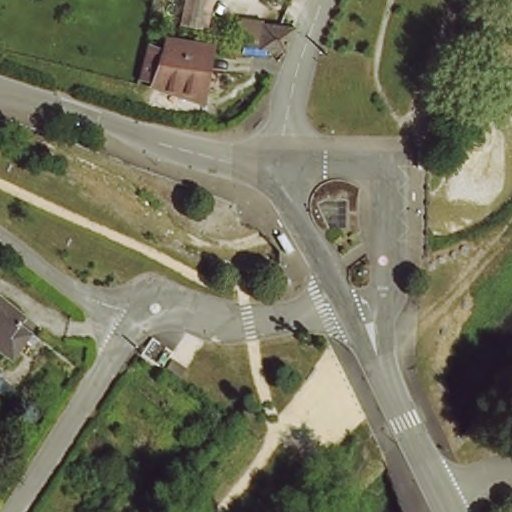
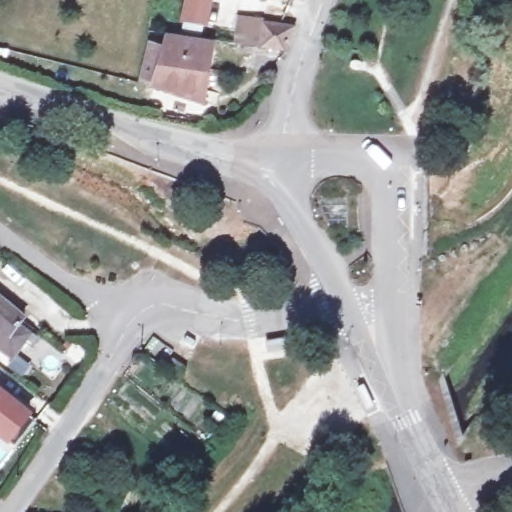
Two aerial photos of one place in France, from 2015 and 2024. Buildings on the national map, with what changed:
unchanged [(186,0),(208,0),(201,26),(181,24),(186,0)]
unchanged [(271,48),(249,45),(253,21),(276,25),(276,22),(308,26),(296,52),(271,48)]
unchanged [(211,96),(162,81),(163,77),(148,74),(158,43),(171,47),(173,35),(221,42),(211,96)]
unchanged [(382,127),(396,127),(396,137),(381,136),(382,127)]
unchanged [(424,145),(424,159),(414,158),(414,144),(424,145)]
unchanged [(25,350),(18,345),(10,355),(0,347),(0,297),(26,318),(24,320),(40,332),(38,335),(25,350)]
new [(0,437),(0,388),(33,413),(9,443),(0,437)]

